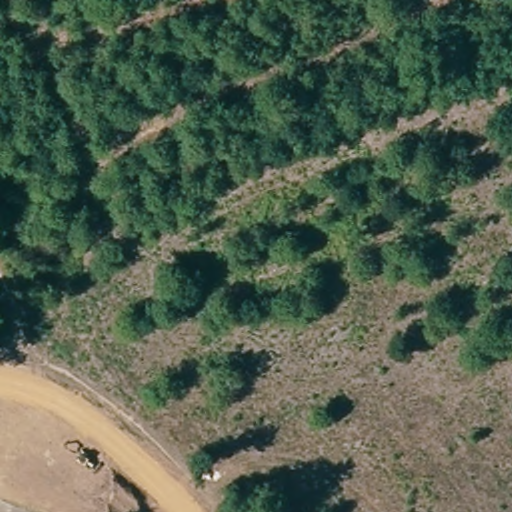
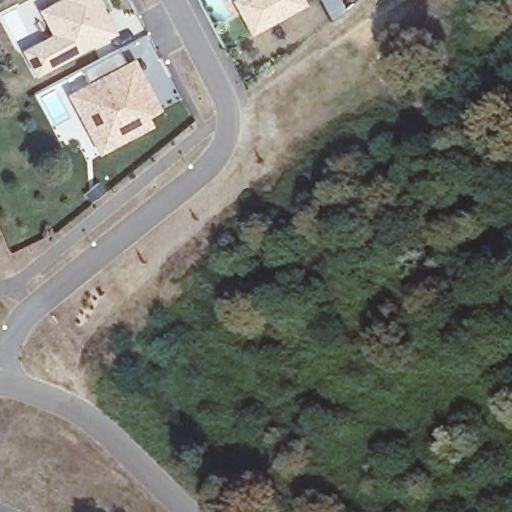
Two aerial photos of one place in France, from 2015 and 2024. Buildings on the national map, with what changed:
new [(20,51),(50,34),(38,10),(55,0),(100,0),(117,32),(34,77),(20,51)]
new [(231,0),(302,0),(305,5),(249,36),(231,0)]
new [(64,94),(87,82),(82,71),(116,52),(124,63),(132,58),(161,111),(147,119),(150,127),(97,154),(64,94)]

